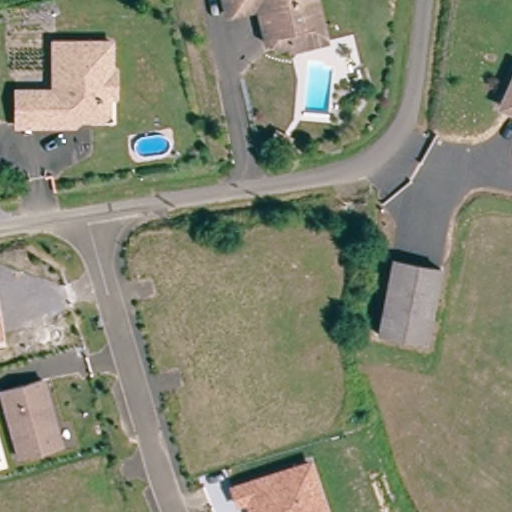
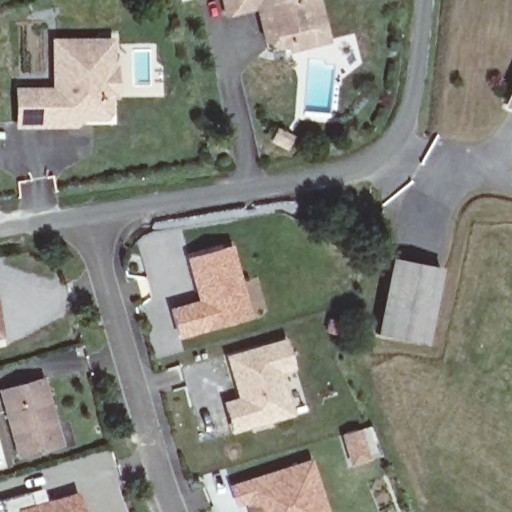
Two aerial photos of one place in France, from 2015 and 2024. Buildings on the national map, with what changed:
unchanged [(231,6),(229,0),(257,0),(231,6)]
unchanged [(295,43),(295,41),(283,42),(268,32),(262,0),(322,0),(326,18),(329,35),(295,43)]
unchanged [(53,114),(35,114),(16,114),(17,80),(36,80),(54,80),(56,31),(113,32),(112,61),(117,62),(117,87),(108,86),(108,107),(82,108),(75,114),(53,114)]
unchanged [(512,99),(512,105),(510,103),(512,99)]
new [(204,303),(202,295),(191,260),(231,248),(251,317),(212,328),(184,337),(176,312),(196,306),(204,303)]
unchanged [(437,266),(422,341),(377,333),(393,258),(437,266)]
unchanged [(0,321),(3,337),(0,338),(0,321)]
new [(244,397),(242,390),(232,359),(287,342),(296,367),(282,371),(295,414),(253,426),(238,431),(231,405),(246,400),(244,397)]
unchanged [(61,443),(19,455),(1,389),(42,377),(61,443)]
unchanged [(234,507),(227,485),(312,458),(328,512),(247,512),(245,504),(234,507)]
new [(18,512),(17,509),(77,491),(83,512),(18,512)]

